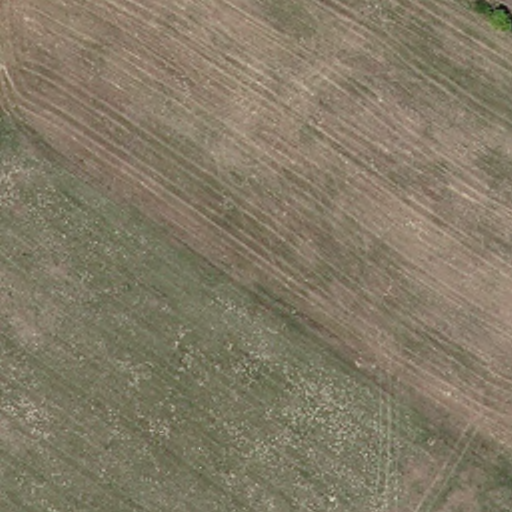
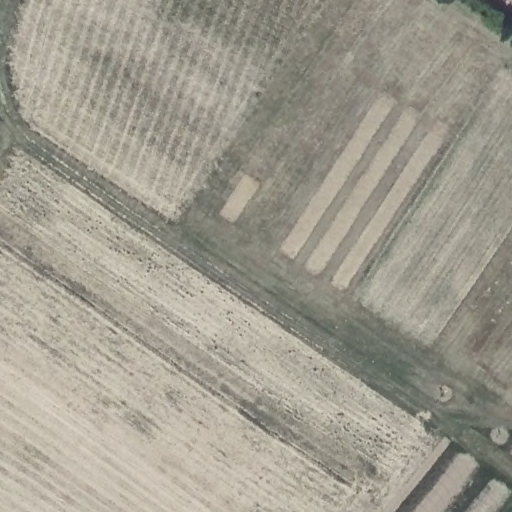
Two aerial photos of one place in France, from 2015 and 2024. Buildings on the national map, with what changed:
[]

